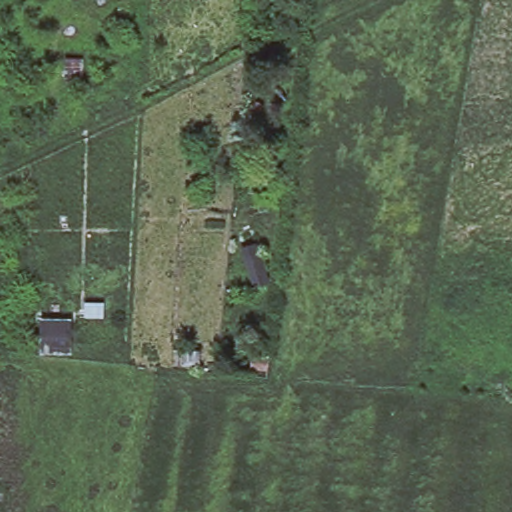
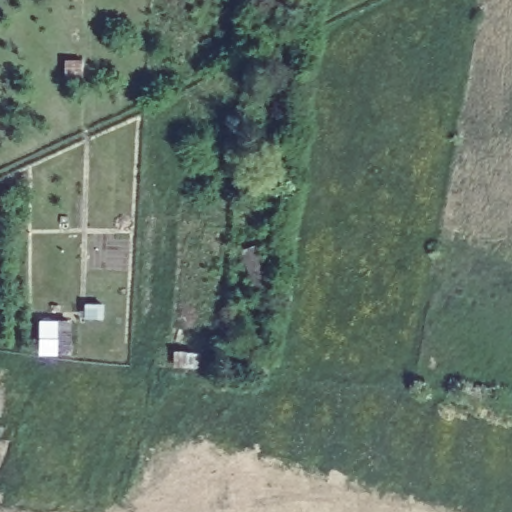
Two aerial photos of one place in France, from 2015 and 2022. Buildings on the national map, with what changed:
unchanged [(73,318),(72,356),(40,353),(40,315),(73,318)]
unchanged [(205,348),(207,370),(172,368),(172,345),(205,348)]
unchanged [(272,350),(270,375),(247,373),(252,350),(272,350)]

